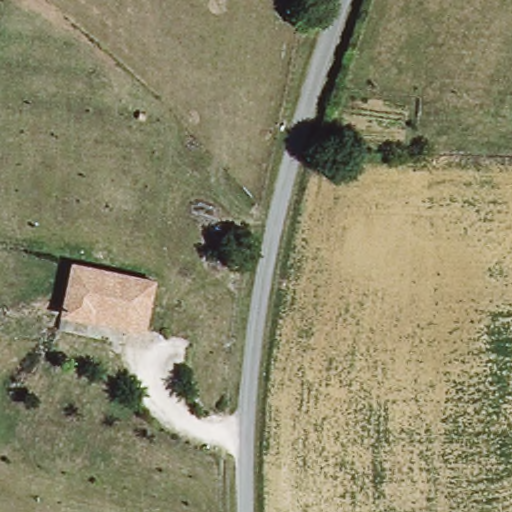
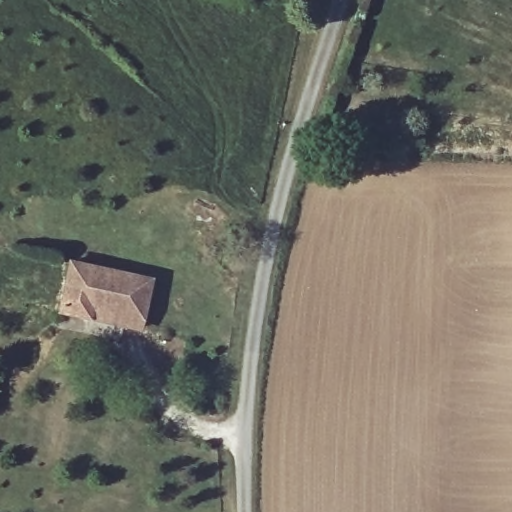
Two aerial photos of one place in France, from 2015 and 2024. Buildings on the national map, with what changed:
unchanged [(58,312),(69,263),(147,277),(138,329),(121,325),(89,318),(58,312)]

